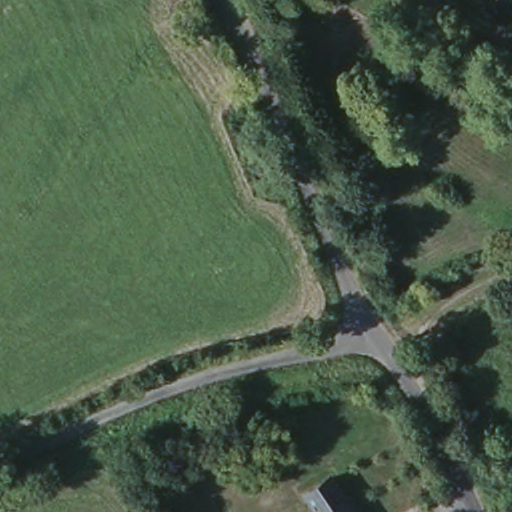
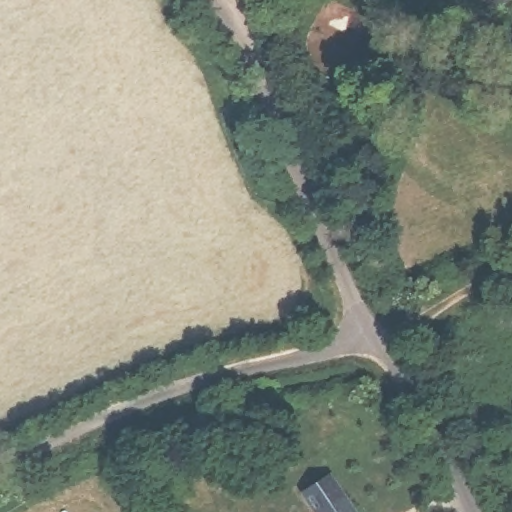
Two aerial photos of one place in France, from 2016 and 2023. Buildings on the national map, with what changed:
unchanged [(490,0),(501,0),(497,5),(490,0)]
unchanged [(403,121),(379,163),(363,154),(386,111),(403,121)]
unchanged [(307,496),(335,478),(346,497),(356,512),(317,512),(307,496)]

